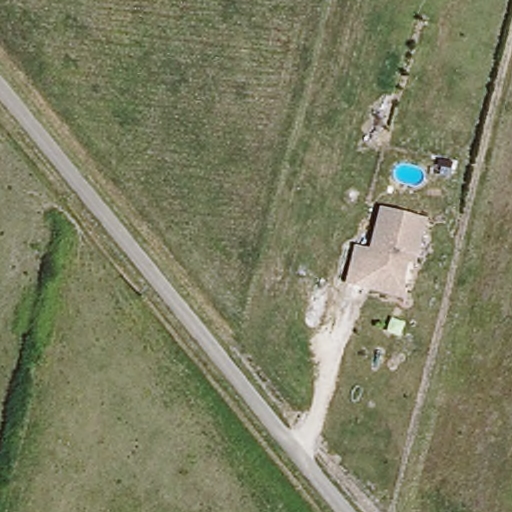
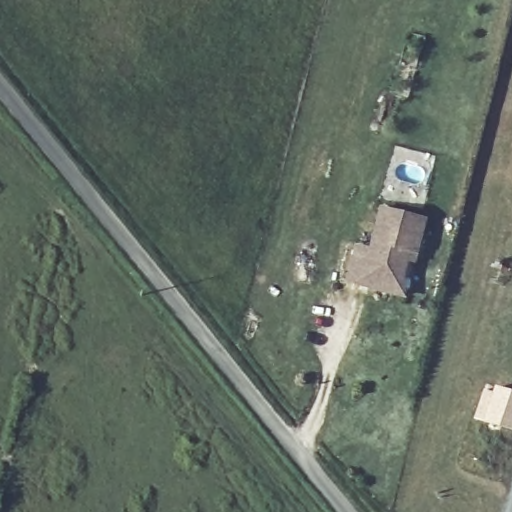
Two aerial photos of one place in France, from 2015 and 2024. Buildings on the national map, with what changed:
unchanged [(364,288),(350,284),(358,251),(372,255),(384,212),(427,224),(418,258),(416,266),(409,264),(405,280),(406,300),(364,288)]
new [(512,396),(512,430),(486,423),(494,391),(512,396)]

